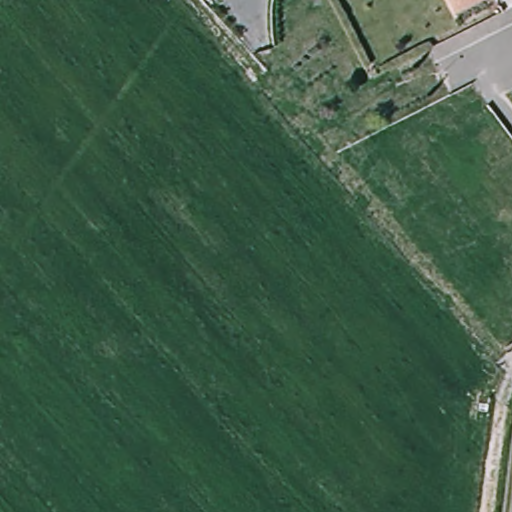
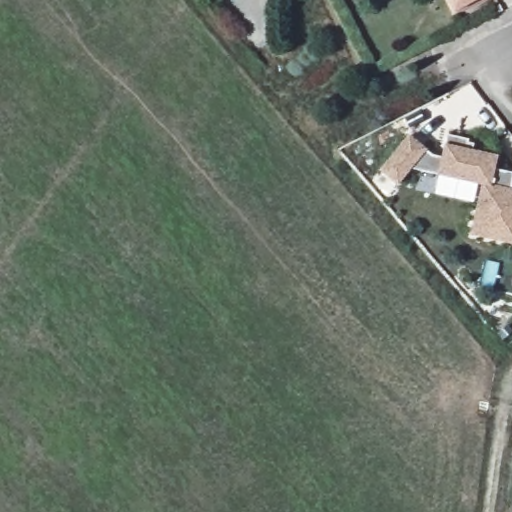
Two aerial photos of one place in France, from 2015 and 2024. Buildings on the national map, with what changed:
unchanged [(453,13),(446,0),(482,0),(453,13)]
new [(509,244),(469,235),(481,185),(409,169),(393,182),(379,165),(411,134),(432,155),(443,158),(447,135),(469,140),(468,143),(474,144),(473,151),(497,157),(494,169),(512,174),(512,186),(511,190),(512,191),(512,245),(509,244)]

